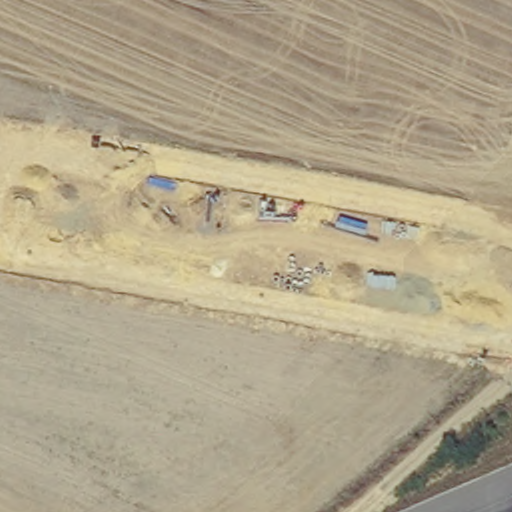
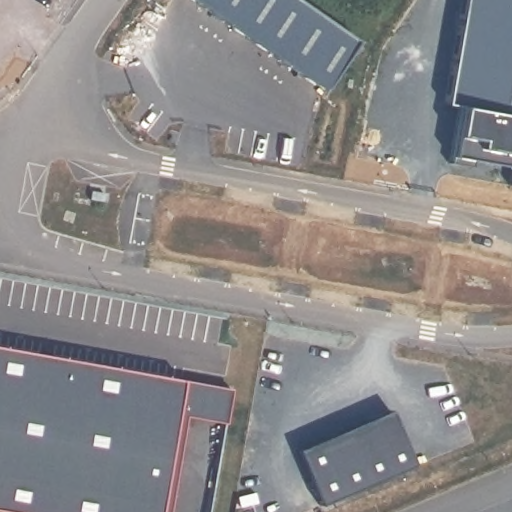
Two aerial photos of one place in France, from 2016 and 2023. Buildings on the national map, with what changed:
new [(356,42),(322,91),(191,0),(297,0),(356,42)]
new [(506,174),(507,168),(447,154),(456,102),(443,99),(459,0),(512,0),(512,175),(506,174)]
new [(5,512),(0,511),(0,358),(226,398),(205,512),(5,512)]
new [(296,447),(388,407),(411,461),(320,501),(296,447)]

